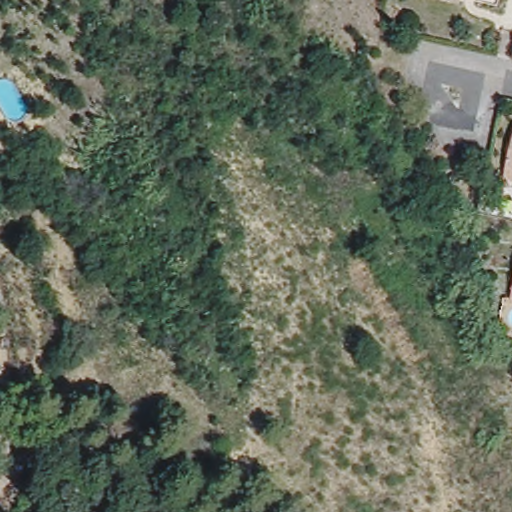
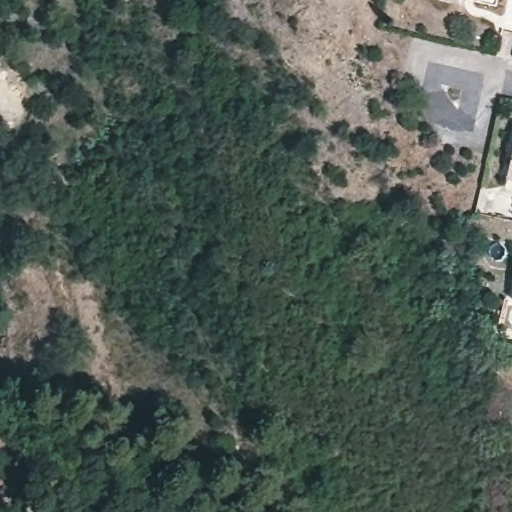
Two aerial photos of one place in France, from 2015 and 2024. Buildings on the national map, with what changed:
unchanged [(448,0),(459,0),(459,3),(448,0)]
unchanged [(498,0),(497,6),(473,0),(498,0)]
unchanged [(509,170),(512,158),(512,180),(507,179),(509,170)]

